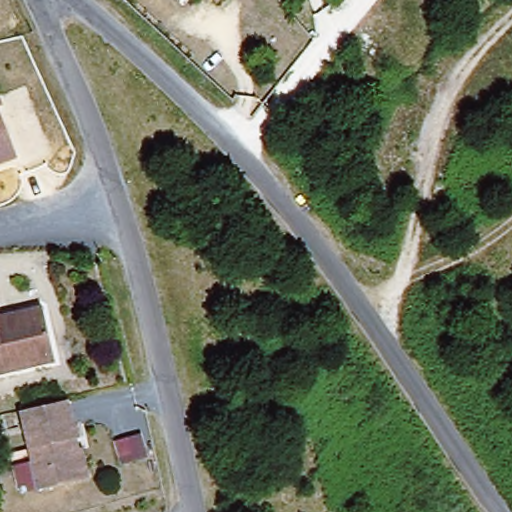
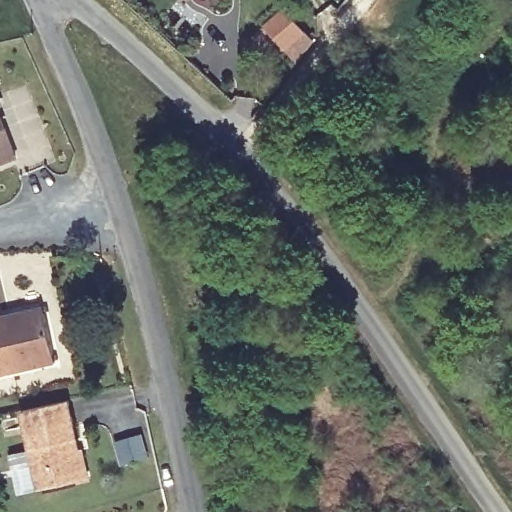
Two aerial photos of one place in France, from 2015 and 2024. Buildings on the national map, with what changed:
unchanged [(215,0),(221,0),(217,3),(215,0)]
new [(309,41),(292,62),(280,49),(261,27),(280,10),(300,33),(300,31),(309,41)]
unchanged [(9,126),(4,128),(15,160),(0,165),(0,101),(9,126)]
unchanged [(13,370),(0,373),(0,311),(1,315),(45,305),(55,350),(58,360),(13,370)]
unchanged [(83,480),(45,489),(27,410),(72,400),(81,439),(83,449),(87,448),(93,478),(83,480)]

